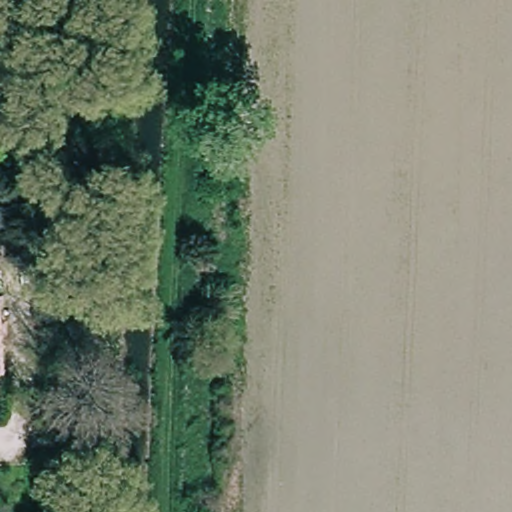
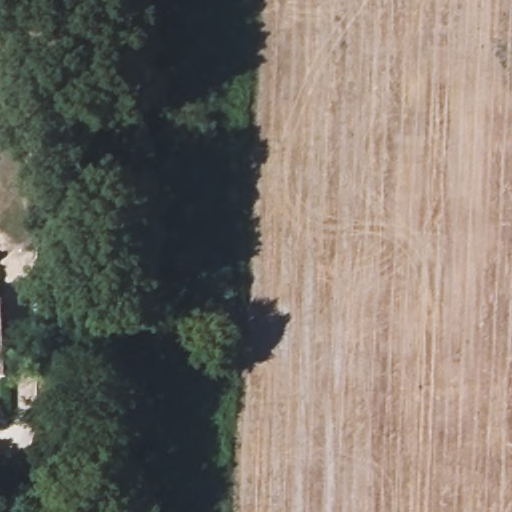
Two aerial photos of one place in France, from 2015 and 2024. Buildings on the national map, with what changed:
unchanged [(7,370),(9,382),(0,384),(0,345),(3,371),(7,370)]
unchanged [(83,446),(84,435),(45,433),(43,426),(83,426),(84,417),(98,417),(98,446),(83,446)]

